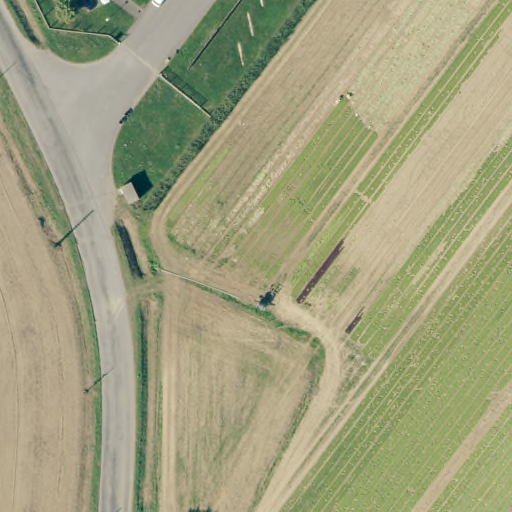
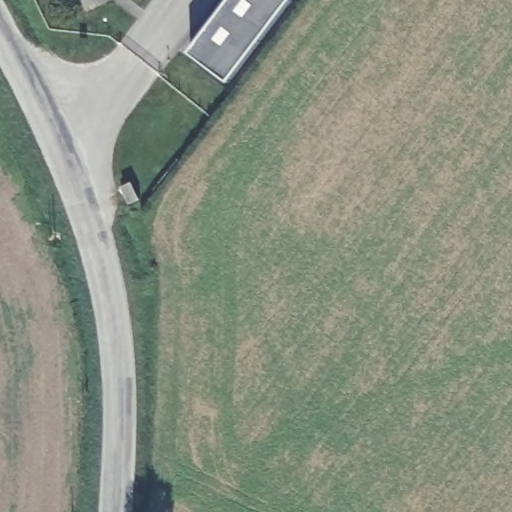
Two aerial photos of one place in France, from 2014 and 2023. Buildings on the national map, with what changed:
new [(230,80),(192,51),(231,0),(291,0),(230,80)]

